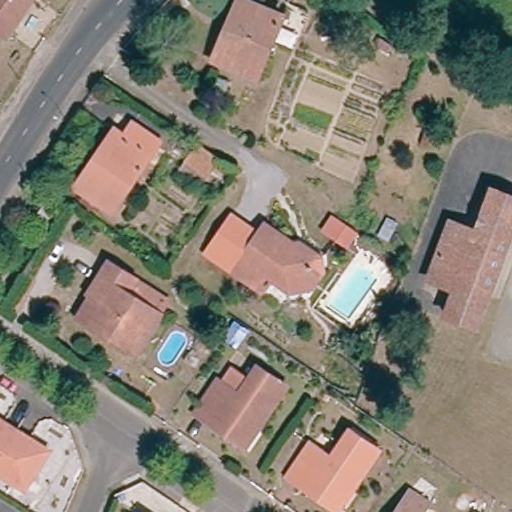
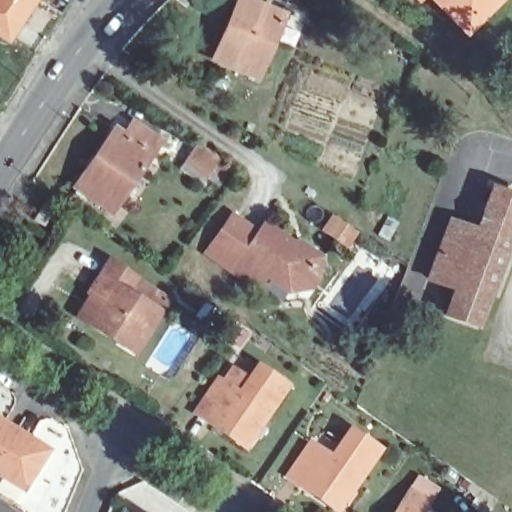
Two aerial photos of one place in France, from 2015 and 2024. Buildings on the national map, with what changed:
unchanged [(0,0),(31,0),(6,35),(0,30),(0,0)]
unchanged [(218,60),(229,33),(244,0),(250,0),(286,18),(260,81),(218,60)]
new [(412,0),(425,0),(418,6),(412,0)]
new [(426,0),(506,0),(465,39),(426,0)]
unchanged [(159,152),(114,218),(80,194),(114,143),(124,149),(132,134),(159,152)]
unchanged [(225,165),(213,184),(189,169),(202,150),(225,165)]
unchanged [(481,236),(497,194),(512,199),(512,249),(481,330),(450,321),(459,294),(436,285),(455,228),(481,236)]
unchanged [(40,202),(49,209),(38,226),(27,220),(40,202)]
unchanged [(331,213),(356,229),(347,244),(322,228),(331,213)]
unchanged [(305,294),(298,288),(289,290),(266,274),(256,289),(229,270),(239,255),(244,258),(265,225),(300,250),(306,249),(318,257),(326,262),(305,294)]
unchanged [(83,316),(97,294),(118,261),(144,279),(136,292),(169,313),(143,355),(123,342),(97,324),(83,316)]
unchanged [(205,420),(193,412),(217,377),(238,392),(256,365),(285,385),(249,441),(245,446),(205,420)]
unchanged [(47,452),(21,493),(0,480),(0,423),(1,424),(47,452)]
unchanged [(300,485),(287,475),(309,442),(329,456),(350,428),(380,449),(339,504),(335,510),(300,485)]
unchanged [(404,509),(409,512),(402,512),(404,509)]

